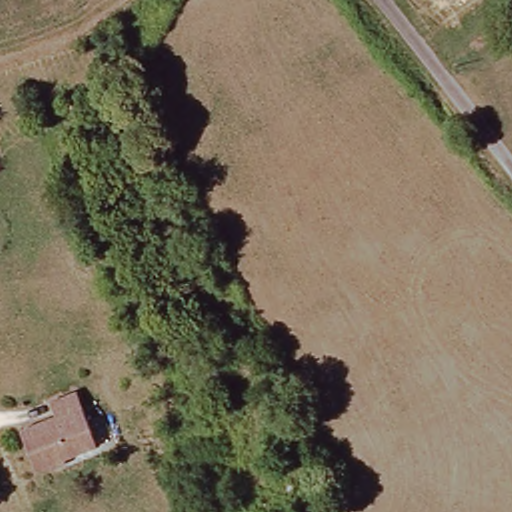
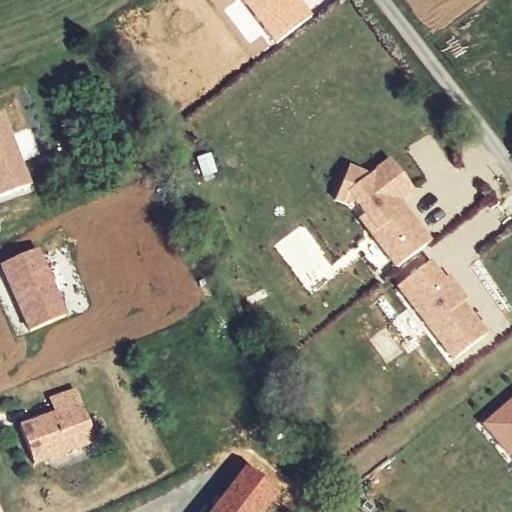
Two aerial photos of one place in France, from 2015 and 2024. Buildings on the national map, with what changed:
new [(311,17),(274,45),(239,0),(297,0),(311,17)]
new [(4,113),(32,187),(0,199),(0,115),(4,113)]
new [(352,204),(345,208),(330,203),(344,170),(365,178),(386,161),(410,191),(395,202),(402,211),(428,243),(394,270),(368,237),(355,221),(362,216),(352,204)]
new [(37,249),(65,316),(28,332),(0,271),(0,266),(37,249)]
new [(427,270),(432,266),(453,292),(461,302),(486,334),(450,363),(392,290),(423,264),(427,270)]
unchanged [(70,452),(72,458),(63,461),(62,456),(32,465),(20,428),(55,416),(48,401),(76,391),(81,406),(95,443),(70,452)]
new [(480,429),(512,401),(512,454),(507,459),(480,429)]
new [(278,497),(267,512),(211,512),(243,469),(278,497)]

